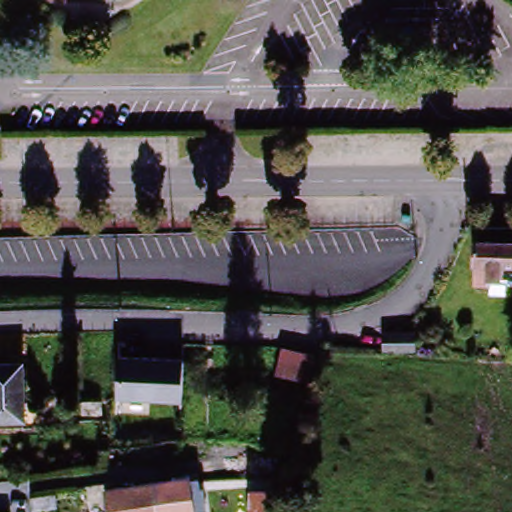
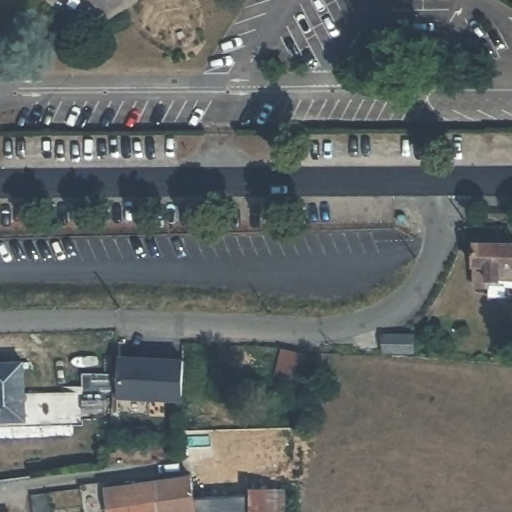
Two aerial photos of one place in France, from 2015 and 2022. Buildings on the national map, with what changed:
unchanged [(472,286),(472,277),(473,241),(512,243),(512,286),(472,286)]
unchanged [(389,337),(415,338),(415,355),(384,355),(384,338),(384,337),(389,337)]
unchanged [(272,366),(273,351),(320,355),(316,375),(315,379),(314,384),(282,380),(271,380),(272,366)]
unchanged [(183,359),(183,401),(117,398),(120,356),(183,359)]
unchanged [(0,425),(0,366),(25,365),(25,425),(0,425)]
unchanged [(103,403),(103,416),(82,415),(83,403),(103,403)]
unchanged [(161,487),(160,478),(192,475),(200,475),(201,482),(206,482),(207,506),(203,506),(203,512),(163,512),(161,487)]
unchanged [(108,485),(128,482),(160,478),(161,487),(163,512),(111,512),(108,485)]
unchanged [(244,494),(260,494),(262,478),(285,479),(285,490),(292,491),(292,495),(291,498),(290,510),(290,512),(242,512),(244,494)]

